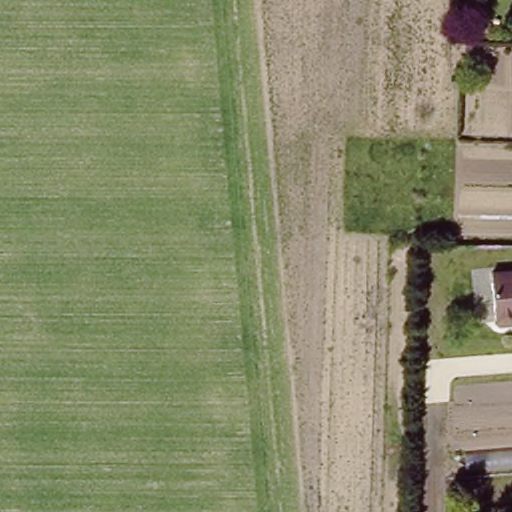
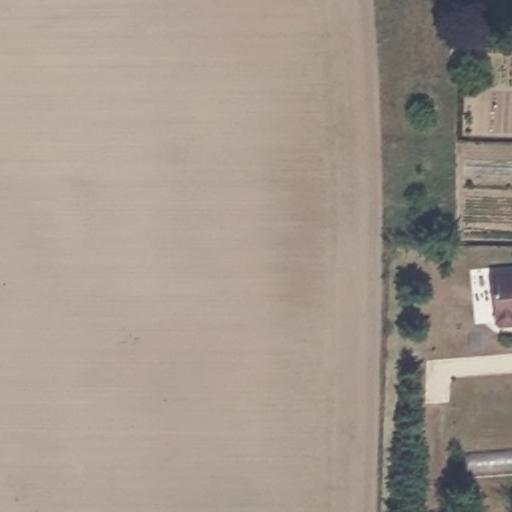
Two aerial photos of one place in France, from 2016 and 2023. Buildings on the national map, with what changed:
unchanged [(494,317),(491,274),(512,272),(512,323),(500,325),(494,317)]

